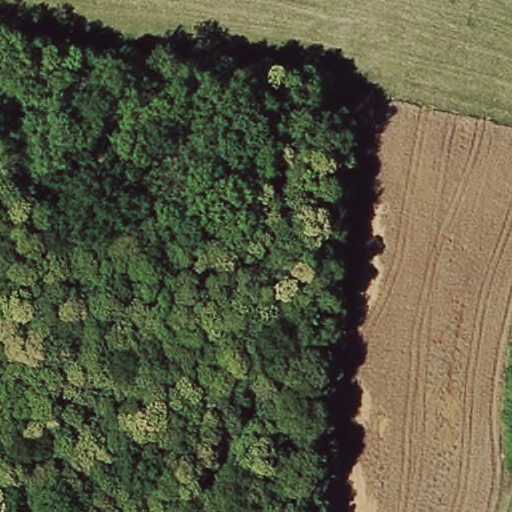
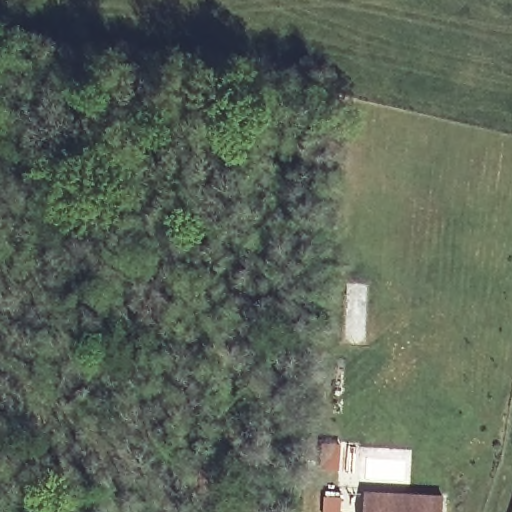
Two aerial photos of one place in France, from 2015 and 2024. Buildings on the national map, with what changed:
new [(442,497),(442,512),(363,512),(365,493),(442,497)]

